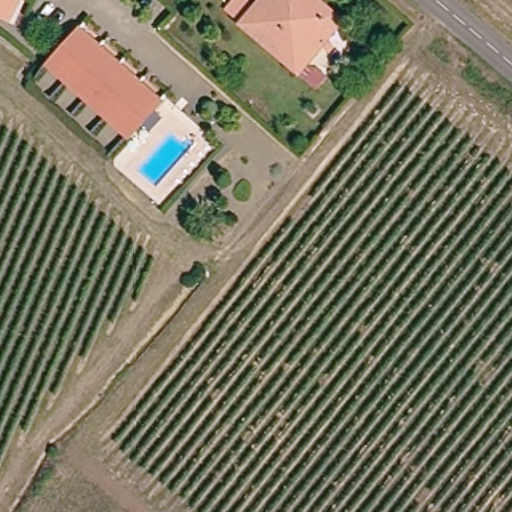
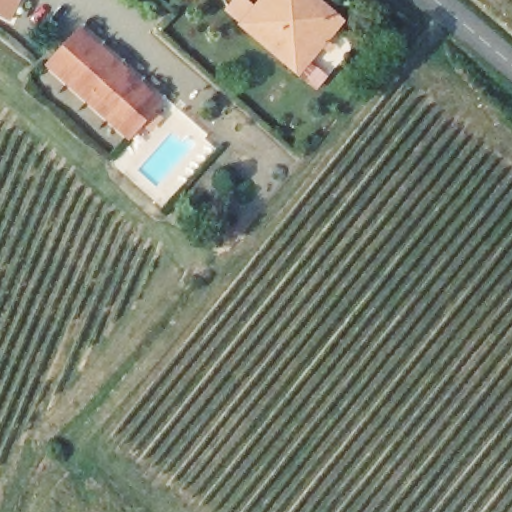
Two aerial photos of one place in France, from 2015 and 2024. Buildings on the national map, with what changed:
unchanged [(3,21),(0,19),(0,0),(14,0),(3,21)]
unchanged [(285,59),(242,21),(263,0),(279,0),(293,13),(306,0),(322,0),(346,20),(326,42),(314,54),(299,70),(285,59)]
unchanged [(172,105),(162,120),(149,112),(141,124),(49,67),(71,34),(162,90),(158,96),(172,105)]

